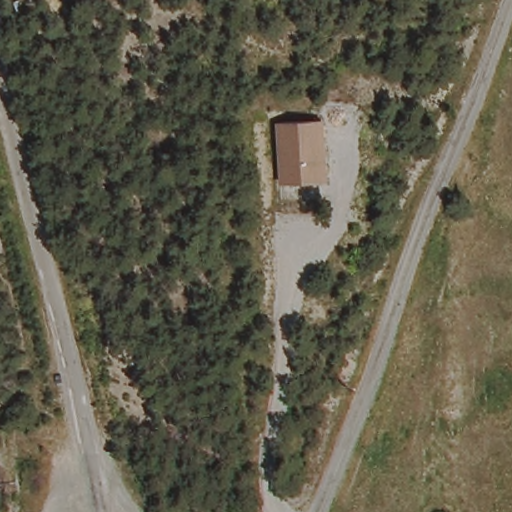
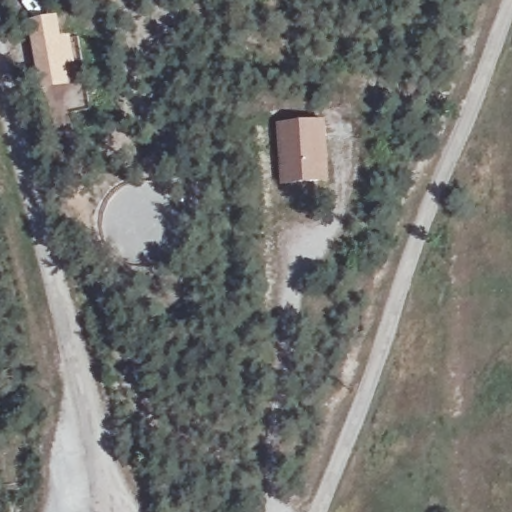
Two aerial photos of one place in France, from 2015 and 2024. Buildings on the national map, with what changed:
new [(29,21),(60,16),(63,37),(72,35),(77,62),(67,65),(72,86),(43,90),(29,21)]
unchanged [(319,180),(284,181),(280,120),(324,117),(327,142),(330,178),(319,180)]

